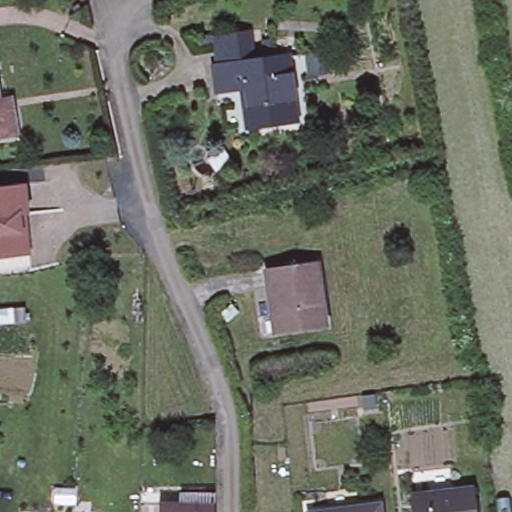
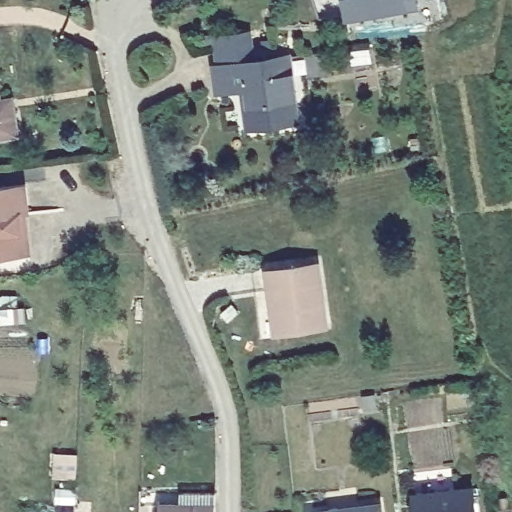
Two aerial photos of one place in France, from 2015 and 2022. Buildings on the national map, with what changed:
new [(418,0),(420,8),(345,19),(341,0),(418,0)]
unchanged [(300,121),(251,127),(248,103),(252,102),(250,87),(220,92),(217,67),(222,67),(217,37),(249,33),(254,62),(292,56),(300,121)]
unchanged [(310,53),(322,52),(325,74),(314,76),(310,53)]
unchanged [(13,106),(16,131),(0,134),(0,99),(2,108),(13,106)]
unchanged [(30,232),(32,255),(0,259),(0,189),(28,186),(32,214),(28,214),(30,232)]
unchanged [(271,271),(320,264),(330,326),(280,333),(271,271)]
unchanged [(479,512),(420,512),(418,492),(477,487),(479,512)]
unchanged [(162,507),(184,507),(184,495),(218,495),(218,508),(218,512),(162,512),(162,507)]
unchanged [(383,512),(324,512),(382,505),(383,512)]

